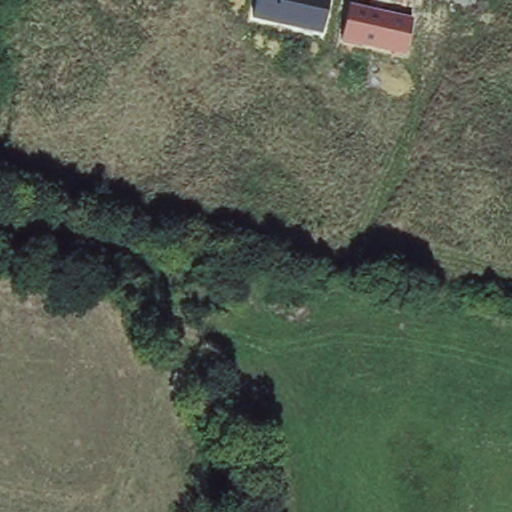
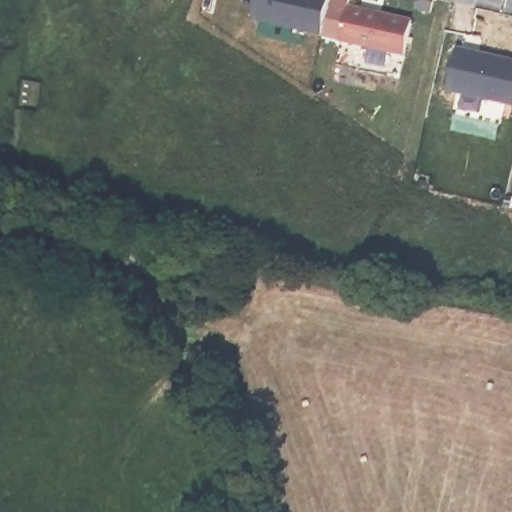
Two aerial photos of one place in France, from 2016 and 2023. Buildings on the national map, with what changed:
unchanged [(252,20),(257,0),(330,0),(322,35),(252,20)]
unchanged [(405,56),(341,42),(349,4),(413,17),(405,56)]
new [(449,90),(459,47),(512,59),(512,104),(449,90)]

